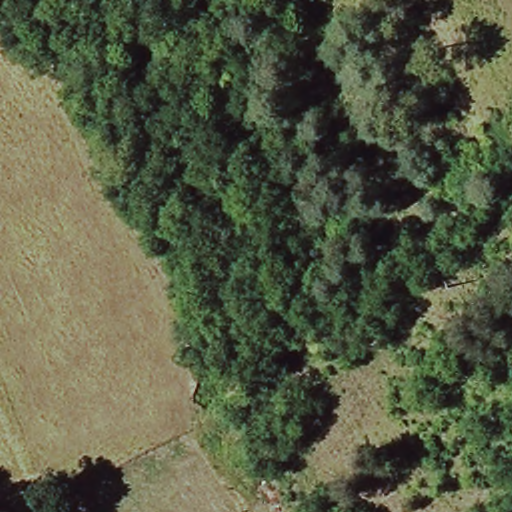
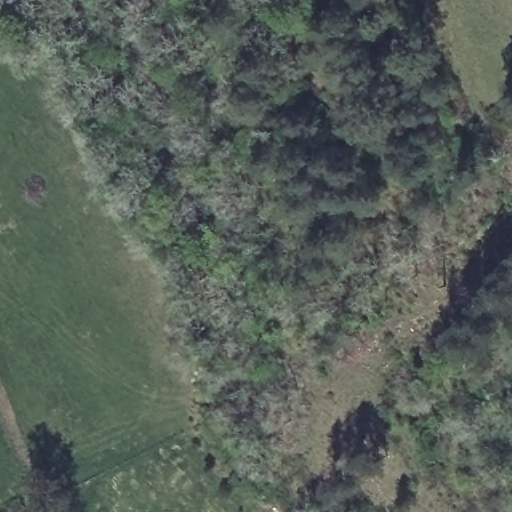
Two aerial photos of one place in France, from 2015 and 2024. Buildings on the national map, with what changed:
[]

